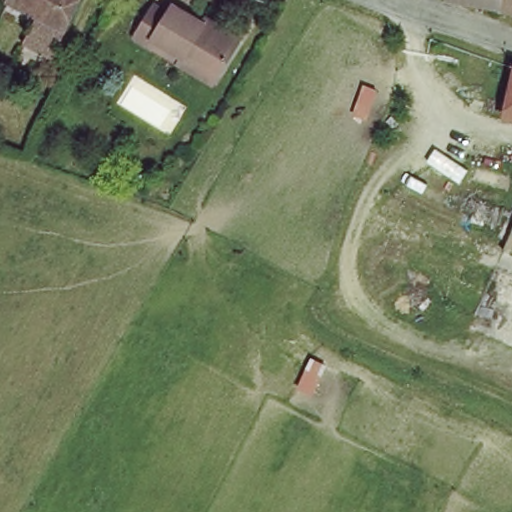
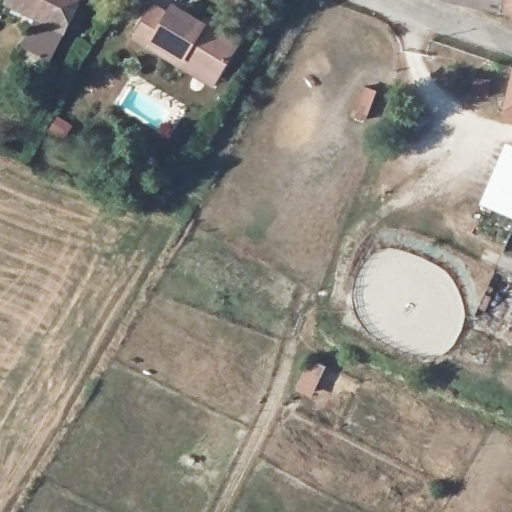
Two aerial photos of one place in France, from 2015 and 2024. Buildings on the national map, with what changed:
unchanged [(59,26),(38,15),(9,0),(73,0),(59,26)]
unchanged [(496,8),(497,0),(494,0),(512,0),(512,11),(496,8)]
unchanged [(45,63),(20,52),(33,26),(38,15),(59,26),(45,63)]
unchanged [(148,56),(133,48),(151,16),(168,23),(173,17),(199,30),(203,25),(239,43),(221,77),(213,91),(148,56)]
unchanged [(507,109),(512,80),(512,110),(507,109)]
new [(480,203),(505,143),(512,146),(512,217),(480,203)]

